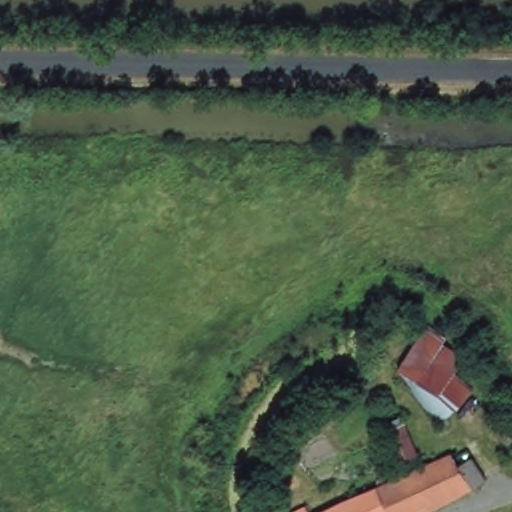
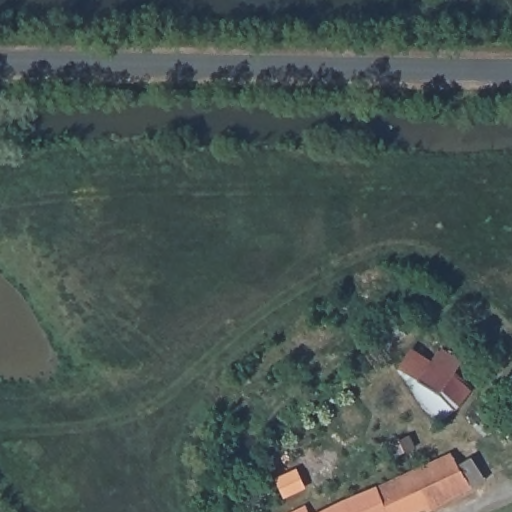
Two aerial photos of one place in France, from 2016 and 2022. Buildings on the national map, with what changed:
unchanged [(429,323),(434,326),(479,395),(435,422),(386,351),(429,323)]
unchanged [(401,412),(424,447),(405,459),(403,455),(384,420),(401,412)]
unchanged [(452,457),(470,492),(433,512),(427,512),(425,510),(421,512),(323,512),(445,449),(452,457)]
unchanged [(297,506),(304,502),(310,512),(285,512),(297,506)]

